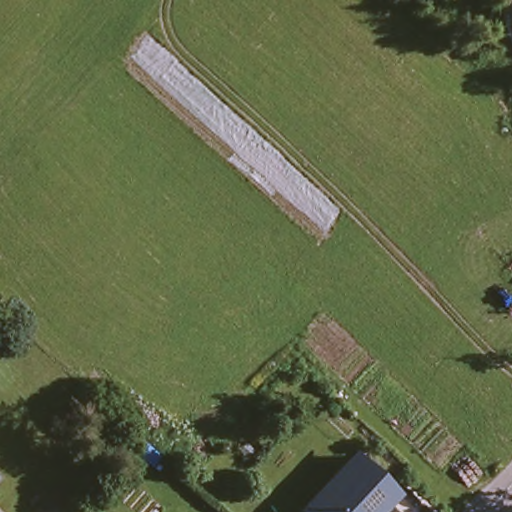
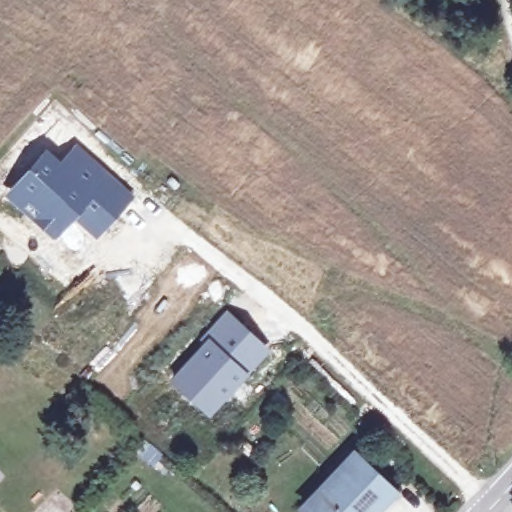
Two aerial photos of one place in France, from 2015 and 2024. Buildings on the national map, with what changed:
new [(46,146),(59,159),(77,141),(136,195),(96,239),(72,218),(53,239),(3,195),(46,146)]
new [(226,307),(273,350),(250,373),(205,332),(226,307)]
new [(195,348),(205,332),(250,373),(209,416),(168,381),(195,348)]
unchanged [(359,457),(396,493),(379,512),(307,512),(359,457)]

